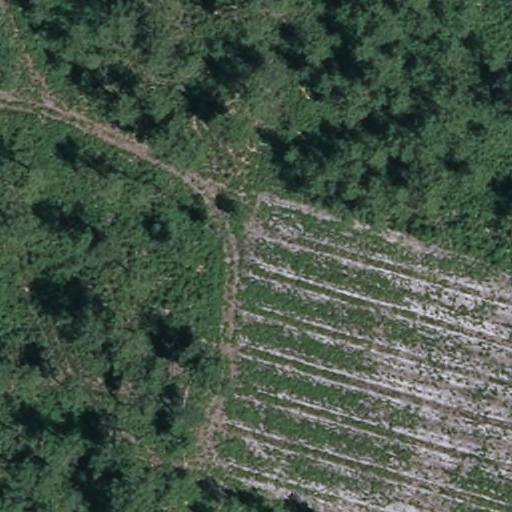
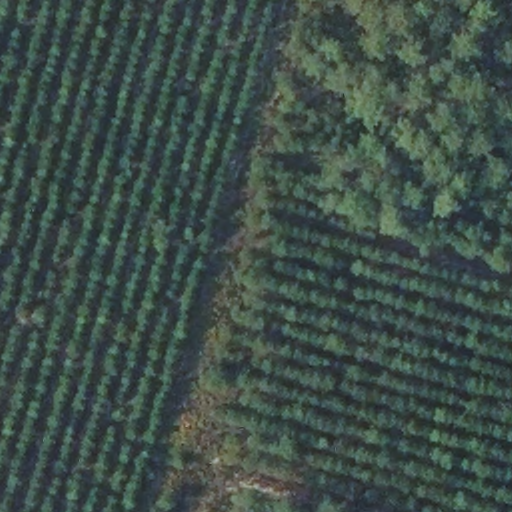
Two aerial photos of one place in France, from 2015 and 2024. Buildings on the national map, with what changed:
[]

